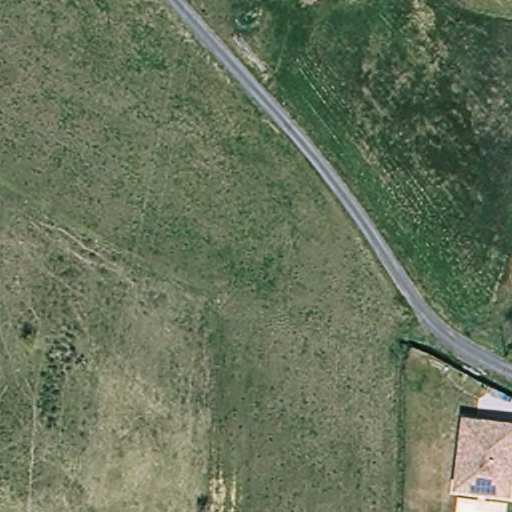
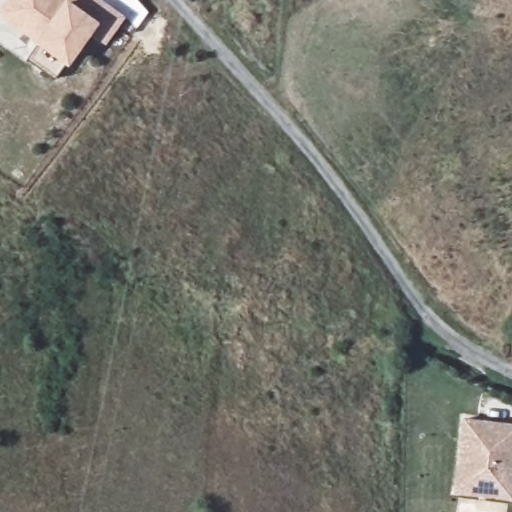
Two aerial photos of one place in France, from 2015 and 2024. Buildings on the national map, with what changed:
new [(127,14),(107,44),(90,32),(69,62),(57,78),(29,58),(39,44),(35,41),(0,16),(0,8),(6,0),(107,0),(127,14)]
unchanged [(461,420),(512,425),(512,474),(510,496),(489,494),(454,490),(456,475),(461,420)]

